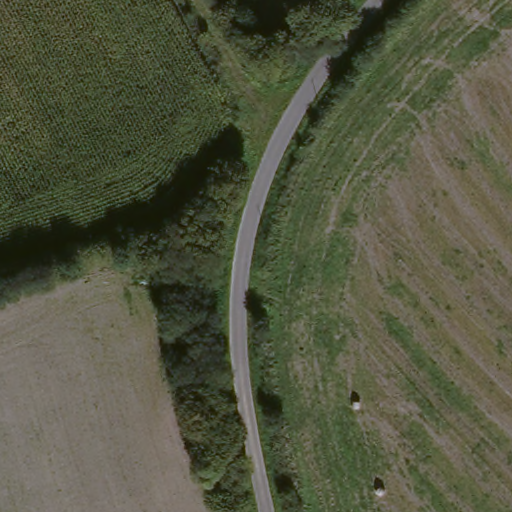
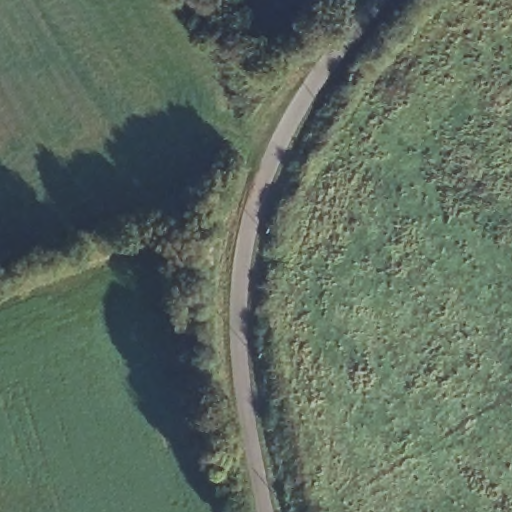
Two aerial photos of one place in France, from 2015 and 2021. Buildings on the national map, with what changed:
[]

